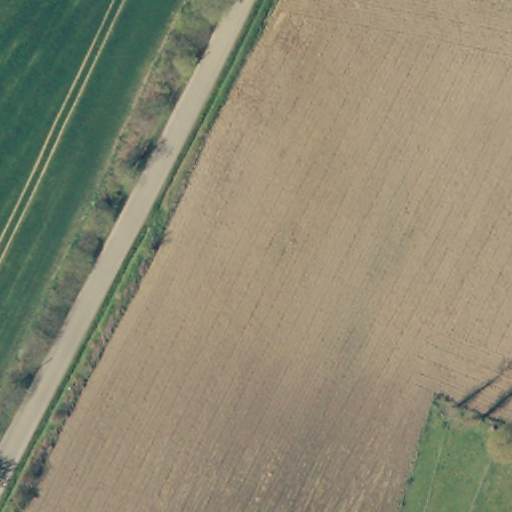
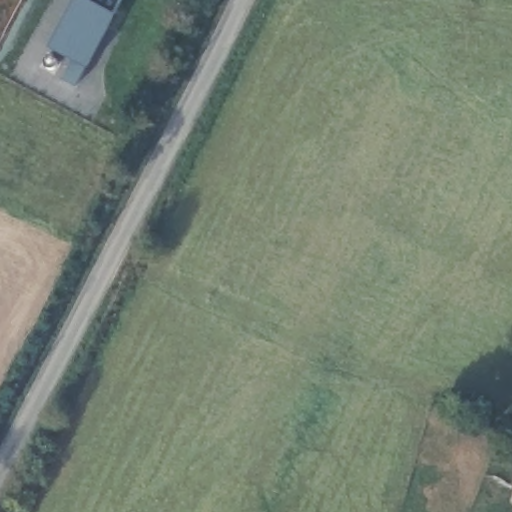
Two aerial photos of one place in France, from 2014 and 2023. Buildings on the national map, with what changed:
new [(86,69),(76,87),(61,81),(71,60),(50,49),(77,0),(121,0),(114,17),(86,69)]

